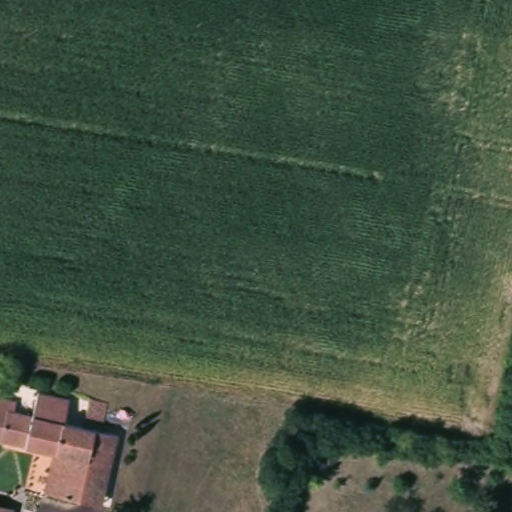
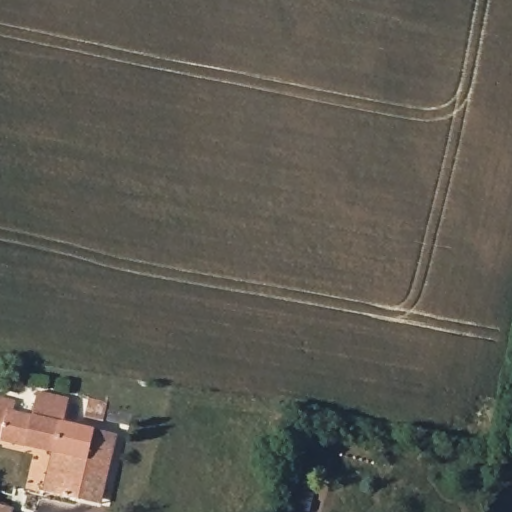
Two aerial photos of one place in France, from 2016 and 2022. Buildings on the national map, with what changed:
unchanged [(50,455),(0,443),(0,401),(9,404),(12,396),(27,400),(25,406),(45,412),(49,395),(80,403),(74,427),(55,498),(49,498),(39,496),(50,455)]
unchanged [(82,506),(55,498),(74,427),(123,440),(108,503),(106,512),(104,512),(82,506)]
unchanged [(5,512),(0,512),(0,511),(5,512)]

